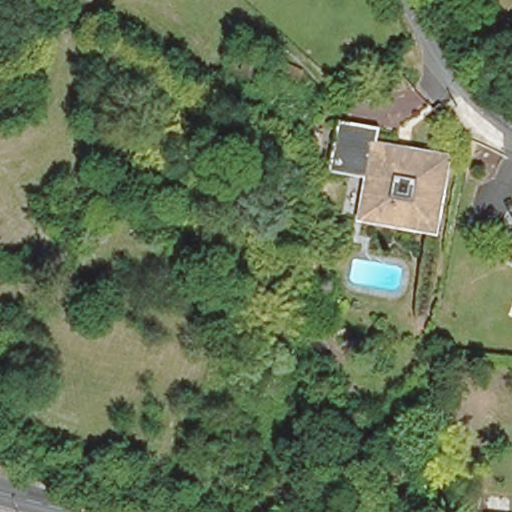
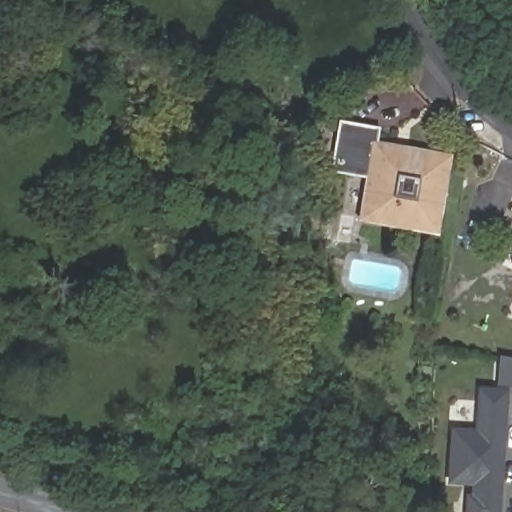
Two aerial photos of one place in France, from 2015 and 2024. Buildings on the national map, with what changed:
unchanged [(302,70),(295,85),(263,70),(252,90),(227,77),(244,43),(302,70)]
unchanged [(413,215),(363,206),(369,168),(330,161),(340,108),(381,115),(378,135),(398,139),(407,140),(446,148),(438,196),(434,218),(413,215)]
unchanged [(512,248),(512,253),(510,252),(512,248)]
new [(464,496),(468,496),(469,487),(446,485),(451,427),(473,429),(477,386),(509,389),(498,512),(464,512),(464,496)]

